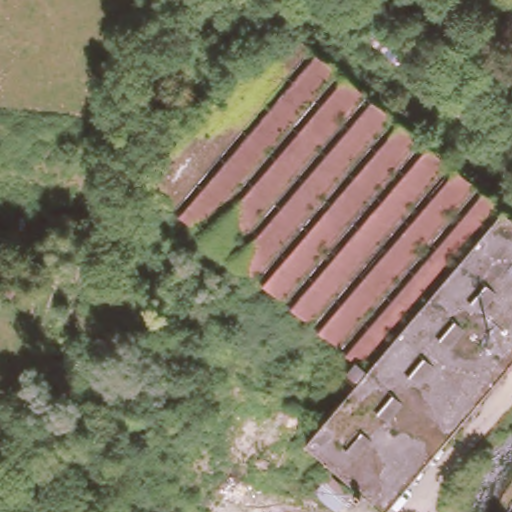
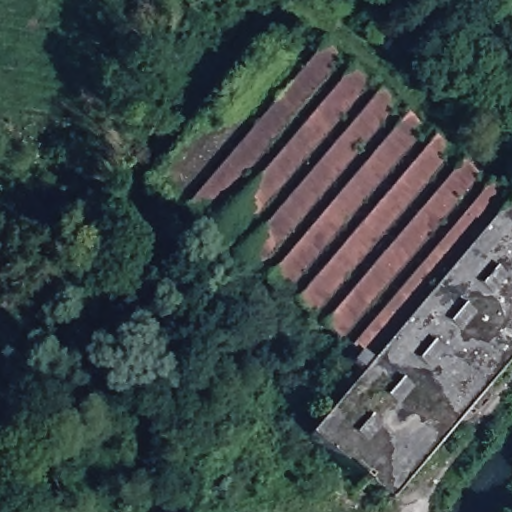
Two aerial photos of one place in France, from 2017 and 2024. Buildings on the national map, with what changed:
unchanged [(481,108),(468,124),(362,35),(374,20),(481,108)]
unchanged [(381,512),(375,512),(352,492),(361,482),(305,436),(357,375),(347,365),(355,354),(149,178),(269,34),(280,44),(294,27),(512,207),(512,355),(381,512)]

